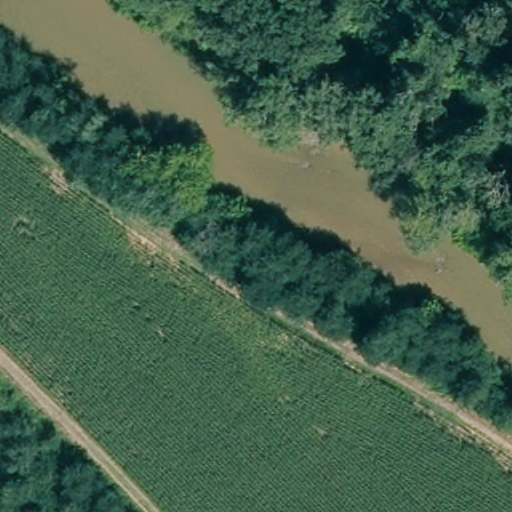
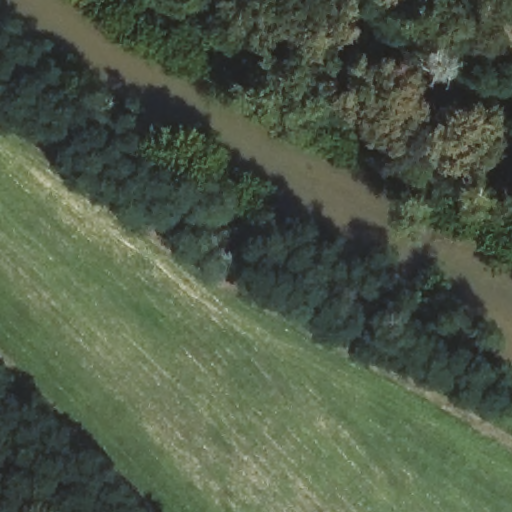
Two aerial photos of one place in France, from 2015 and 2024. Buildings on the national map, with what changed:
[]

